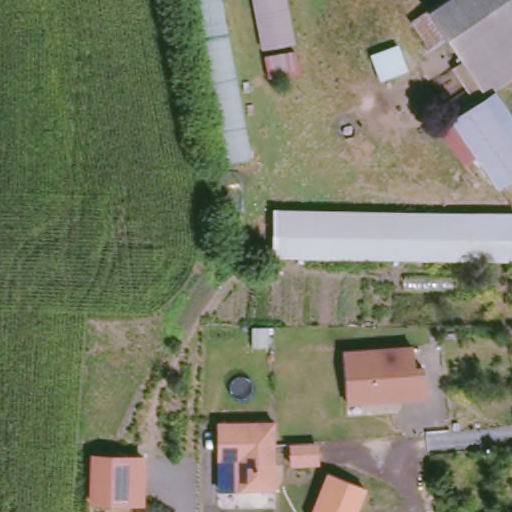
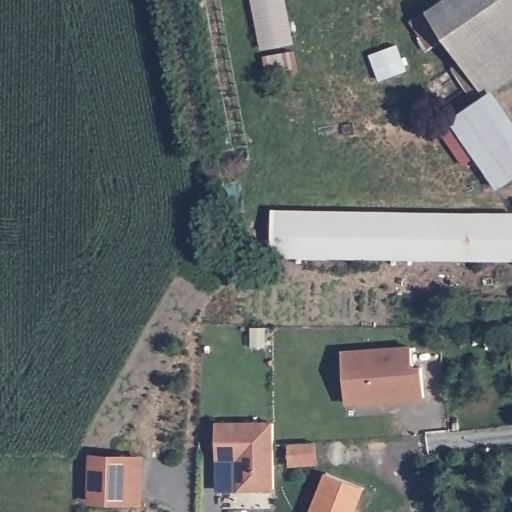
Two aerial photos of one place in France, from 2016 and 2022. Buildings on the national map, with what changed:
unchanged [(223,167),(192,0),(223,0),(253,161),(223,167)]
unchanged [(273,106),(253,0),(285,0),(304,100),(273,106)]
unchanged [(383,86),(351,0),(383,0),(411,75),(383,86)]
unchanged [(428,11),(445,0),(512,0),(512,81),(495,93),(487,98),(448,41),(432,52),(410,23),(428,11)]
unchanged [(495,93),(512,118),(512,184),(500,193),(452,121),(487,98),(495,93)]
unchanged [(512,212),(512,264),(273,258),(275,208),(512,212)]
unchanged [(411,347),(413,367),(422,367),(424,396),(381,399),(376,394),(371,394),(366,399),(345,401),(342,351),(411,347)]
unchanged [(242,489),(238,484),(239,459),(215,459),(215,424),(274,424),(273,442),(274,489),(242,489)]
unchanged [(130,459),(145,459),(144,504),(129,504),(106,504),(94,504),(94,459),(130,459)]
unchanged [(357,486),(347,512),(305,512),(322,472),(357,486)]

